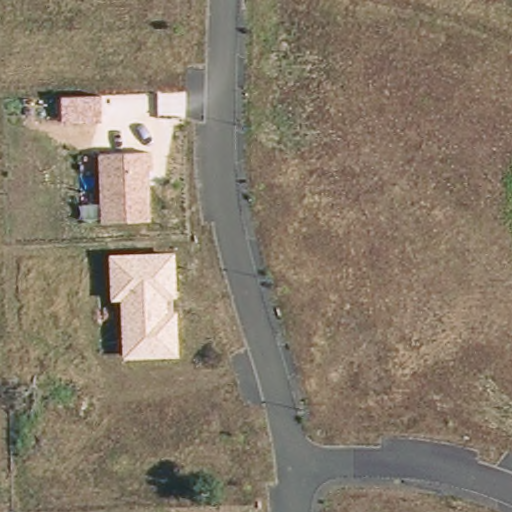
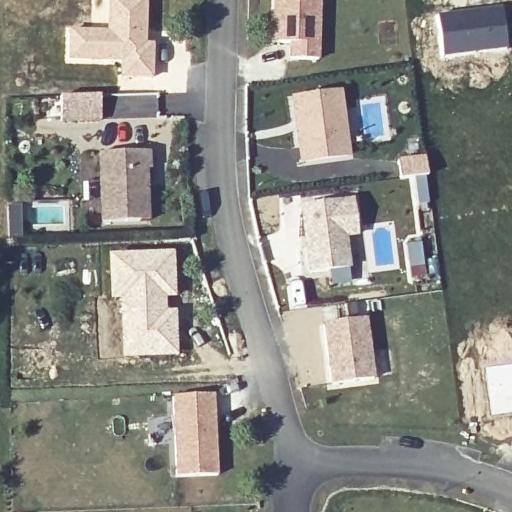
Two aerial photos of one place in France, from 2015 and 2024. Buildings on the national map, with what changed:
new [(105,29),(107,0),(147,0),(146,42),(155,42),(154,78),(119,78),(119,64),(66,62),(68,27),(105,29)]
new [(323,0),(321,59),(293,59),(294,43),(276,42),(277,0),(323,0)]
new [(503,3),(509,48),(443,57),(438,14),(503,3)]
new [(352,157),(300,164),(290,98),(344,90),(352,157)]
new [(103,96),(104,122),(64,123),(64,97),(103,96)]
unchanged [(150,153),(150,169),(147,170),(148,221),(98,223),(95,155),(150,153)]
new [(355,199),(359,233),(346,235),(350,266),(311,272),(302,206),(355,199)]
unchanged [(174,252),(177,356),(121,358),(120,299),(109,299),(108,253),(174,252)]
new [(376,378),(331,384),(323,324),(367,319),(376,378)]
new [(217,474),(176,476),(172,397),(215,394),(217,474)]

